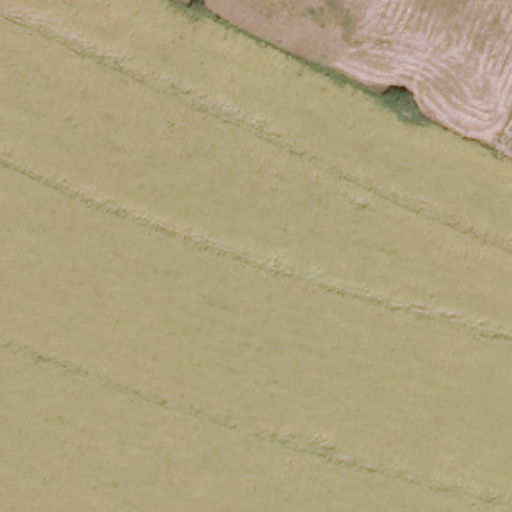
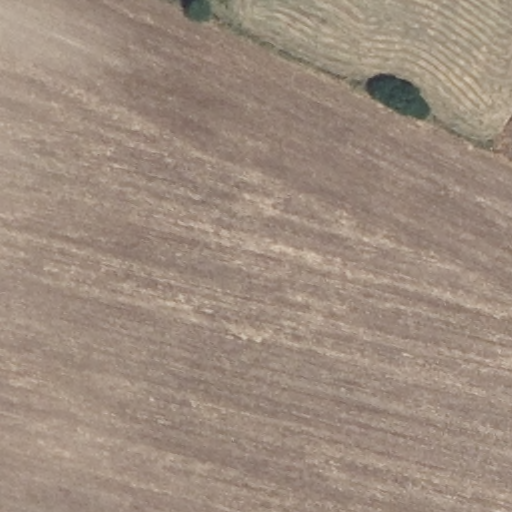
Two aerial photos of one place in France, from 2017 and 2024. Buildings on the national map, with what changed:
[]

